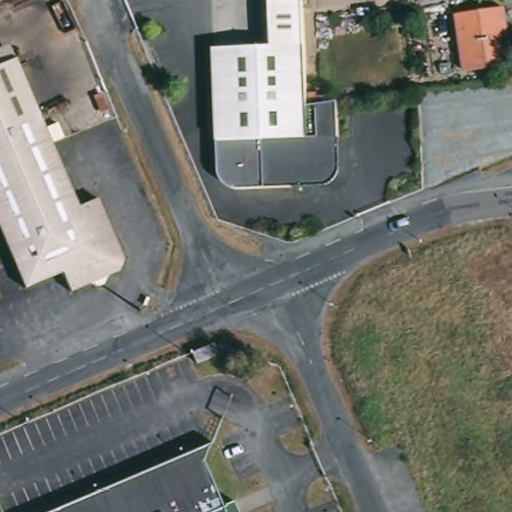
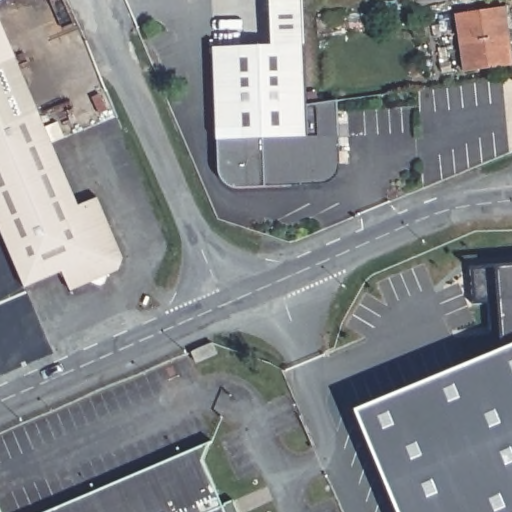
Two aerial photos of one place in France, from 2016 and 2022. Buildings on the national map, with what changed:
unchanged [(270,46),(267,0),(303,0),(307,45),(270,46)]
unchanged [(422,0),(442,0),(422,3),(422,0)]
unchanged [(465,63),(460,11),(506,5),(512,48),(512,67),(467,72),(465,63)]
unchanged [(0,67),(0,51),(17,44),(23,58),(0,67)]
unchanged [(270,46),(307,45),(309,103),(340,102),(342,169),(329,184),(267,187),(267,139),(218,140),(215,47),(270,46)]
unchanged [(81,208),(98,202),(124,269),(104,277),(105,280),(103,284),(97,285),(93,285),(91,283),(68,291),(62,278),(25,291),(0,226),(0,67),(23,58),(81,208)]
unchanged [(255,189),(248,190),(236,189),(224,186),(217,173),(216,159),(218,140),(267,139),(267,187),(255,189)]
new [(354,410),(505,348),(500,299),(474,301),(472,269),(499,268),(512,267),(512,512),(397,512),(354,410)]
unchanged [(200,449),(226,512),(49,512),(200,449)]
unchanged [(1,512),(0,512),(0,509),(1,512)]

